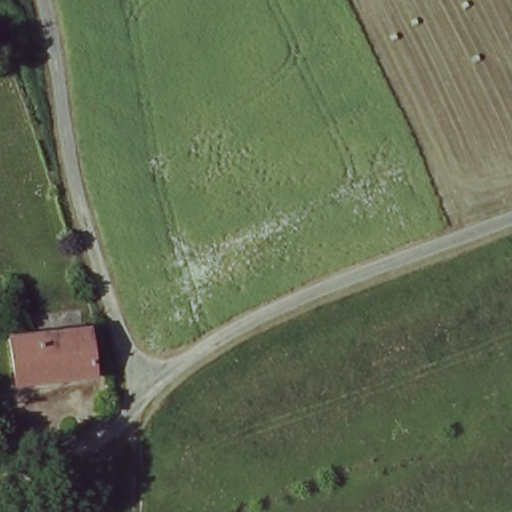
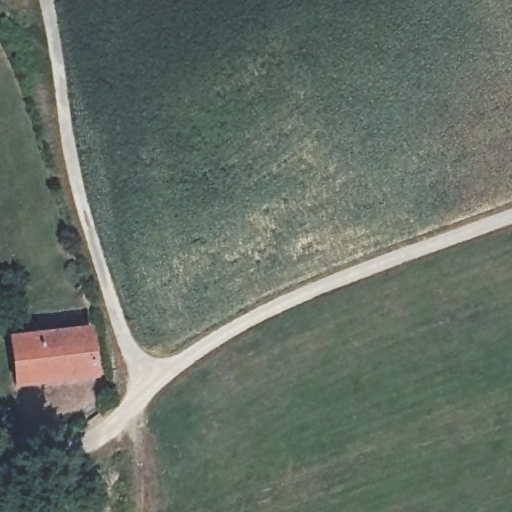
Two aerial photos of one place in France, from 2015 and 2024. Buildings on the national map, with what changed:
unchanged [(82,323),(93,369),(25,383),(16,336),(82,323)]

